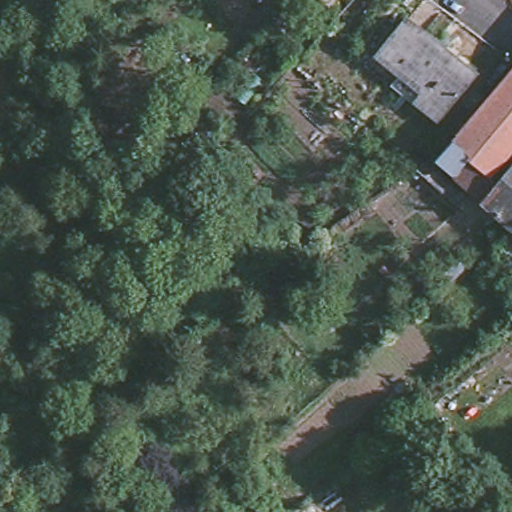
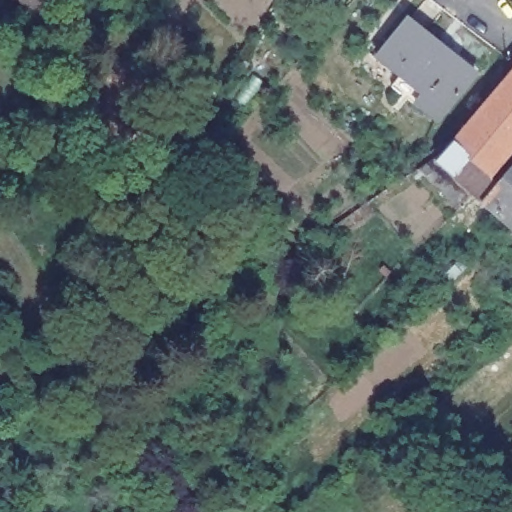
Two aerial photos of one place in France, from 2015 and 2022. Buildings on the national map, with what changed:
unchanged [(57,16),(35,27),(20,0),(48,0),(57,16)]
unchanged [(475,71),(438,119),(420,105),(418,106),(393,86),(401,75),(378,56),(407,20),(475,71)]
unchanged [(465,201),(464,200),(445,182),(427,165),(428,164),(445,145),(470,119),(512,67),(512,144),(480,182),(474,190),(475,191),(465,201)]
unchanged [(512,159),(512,230),(506,236),(490,222),(472,206),(512,159)]
unchanged [(512,230),(512,242),(506,236),(512,230)]

